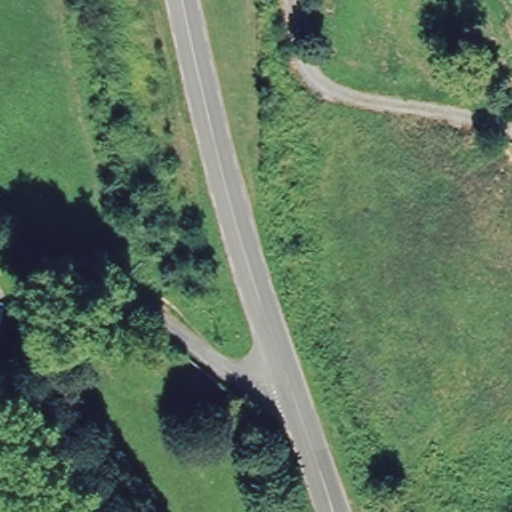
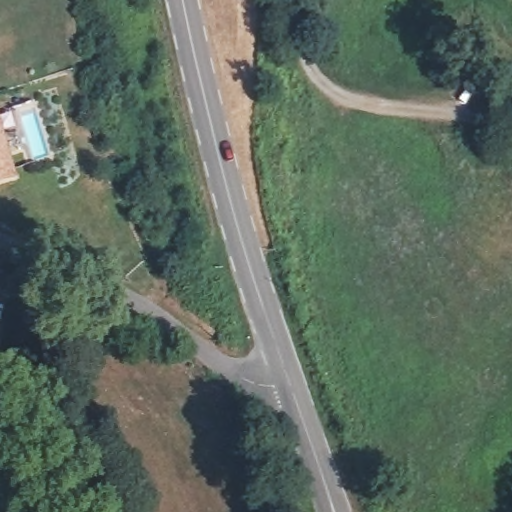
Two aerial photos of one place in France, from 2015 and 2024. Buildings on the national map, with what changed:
new [(0,118),(18,178),(0,184),(0,118)]

